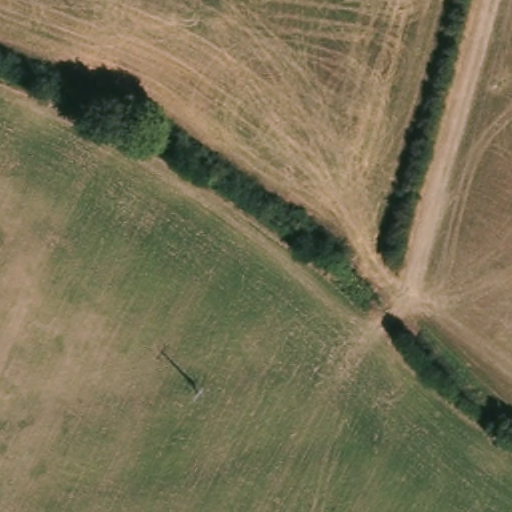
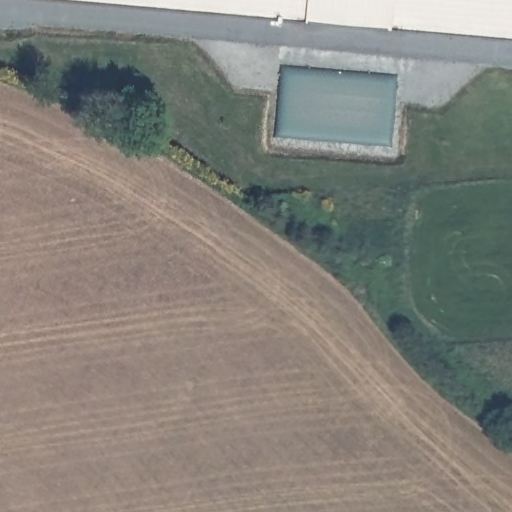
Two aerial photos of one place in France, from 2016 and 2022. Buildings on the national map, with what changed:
new [(512,37),(97,0),(512,0),(512,37)]

